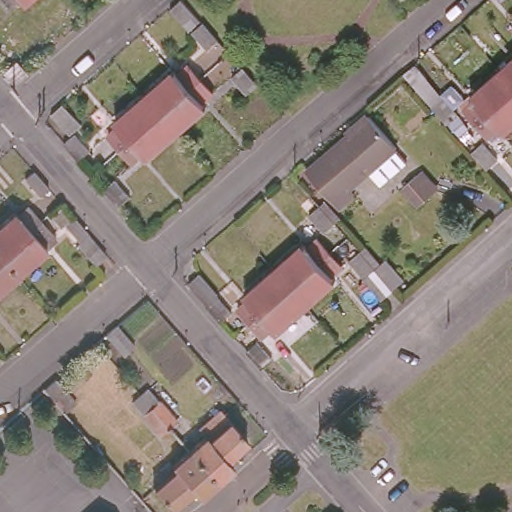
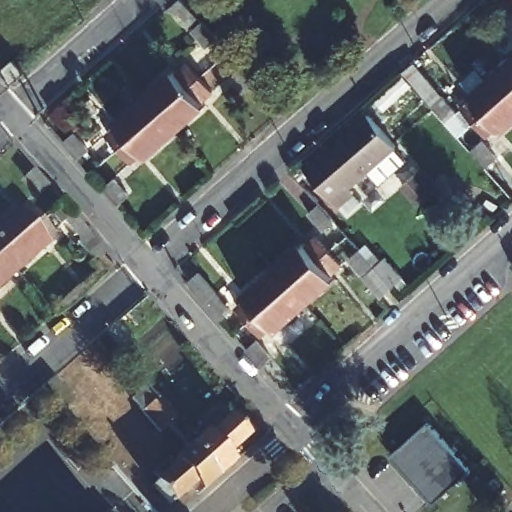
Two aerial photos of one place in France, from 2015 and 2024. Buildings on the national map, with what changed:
demolished [(3,0),(0,3),(0,0),(3,0)]
unchanged [(180,0),(198,21),(187,31),(168,10),(180,0)]
unchanged [(206,44),(195,29),(202,22),(215,36),(206,44)]
unchanged [(470,95),(500,69),(512,58),(512,124),(502,133),(498,128),(490,134),(477,120),(466,108),(475,100),(470,95)]
unchanged [(14,59),(25,71),(16,80),(12,84),(0,72),(14,59)]
unchanged [(110,129),(119,121),(115,116),(144,90),(172,66),(175,70),(187,60),(198,74),(208,86),(198,96),(202,101),(174,128),(145,154),(140,147),(131,154),(122,142),(110,129)]
unchanged [(253,80),(245,87),(232,73),(241,65),(253,80)]
unchanged [(442,97),(457,114),(447,124),(432,106),(442,97)]
unchanged [(52,114),(62,104),(82,124),(71,134),(52,114)]
unchanged [(367,112),(395,146),(348,183),(356,193),(342,205),(305,161),(367,112)]
unchanged [(72,136),(85,153),(76,160),(63,144),(72,136)]
unchanged [(472,149),(480,142),(498,162),(489,170),(472,149)]
unchanged [(38,179),(46,187),(36,195),(22,178),(31,169),(38,179)]
unchanged [(110,180),(122,195),(114,202),(100,187),(110,180)]
unchanged [(310,210),(317,204),(327,195),(343,214),(335,222),(326,230),(310,210)]
unchanged [(12,206),(15,209),(25,200),(39,216),(53,230),(42,241),(44,244),(15,269),(0,283),(0,217),(12,206)]
unchanged [(87,234),(77,243),(63,226),(73,218),(87,234)]
unchanged [(240,302),(250,293),(245,288),(273,261),(302,235),(307,242),(317,234),(327,247),(339,260),(330,268),(335,274),(306,300),(277,326),(272,319),(262,328),(251,315),(240,302)]
unchanged [(94,264),(80,249),(91,240),(105,254),(109,259),(98,268),(94,264)]
unchanged [(377,269),(370,276),(350,255),(358,248),(377,269)]
unchanged [(207,304),(214,298),(231,315),(223,323),(207,304)]
unchanged [(117,324),(135,344),(124,353),(105,333),(117,324)]
unchanged [(245,347),(254,340),(272,361),(264,368),(245,347)]
unchanged [(0,357),(0,355),(1,357),(0,357)]
unchanged [(72,397),(60,407),(45,388),(47,387),(56,379),(72,397)]
unchanged [(155,429),(127,396),(135,389),(142,382),(172,416),(164,422),(155,429)]
unchanged [(201,435),(198,432),(214,418),(212,414),(231,396),(240,407),(225,421),(246,444),(225,463),(232,470),(215,486),(184,450),(201,435)]
new [(430,422),(473,471),(436,504),(392,455),(430,422)]
unchanged [(215,486),(198,501),(190,493),(170,511),(152,492),(174,473),(167,465),(184,450),(215,486)]

